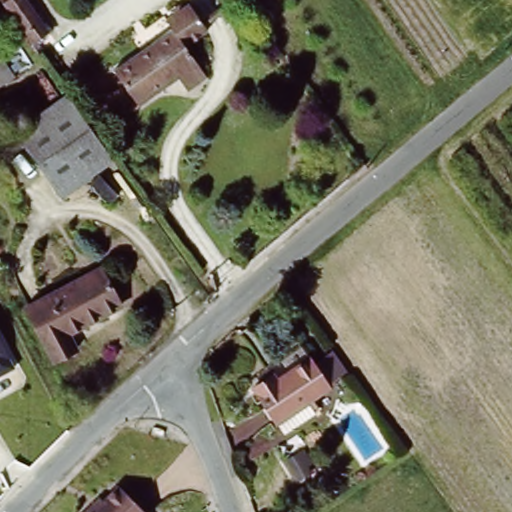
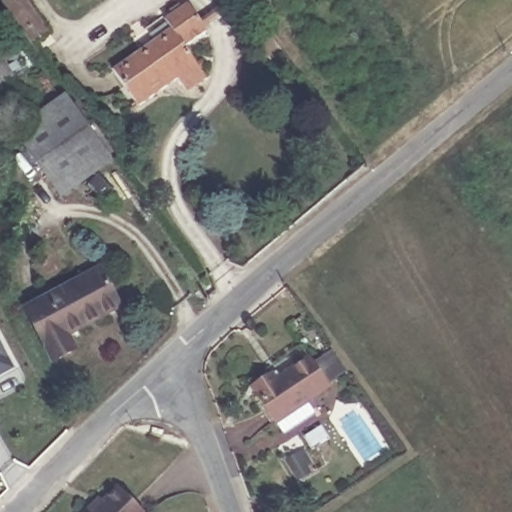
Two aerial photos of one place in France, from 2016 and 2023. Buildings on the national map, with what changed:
unchanged [(1,4),(6,0),(24,0),(47,33),(30,45),(1,4)]
unchanged [(199,31),(176,48),(201,85),(183,97),(173,84),(148,48),(166,35),(157,22),(181,5),(199,31)]
unchanged [(173,84),(134,111),(109,75),(148,48),(173,84)]
unchanged [(25,69),(12,80),(0,88),(0,55),(11,50),(25,69)]
unchanged [(110,162),(61,197),(16,133),(66,97),(110,162)]
unchanged [(66,340),(74,355),(53,367),(24,313),(99,275),(119,311),(66,340)]
unchanged [(0,376),(0,342),(14,368),(0,376)]
unchanged [(303,360),(324,389),(272,426),(248,391),(267,377),(271,383),(303,360)]
unchanged [(83,512),(90,505),(99,497),(101,500),(116,486),(140,512),(83,512)]

